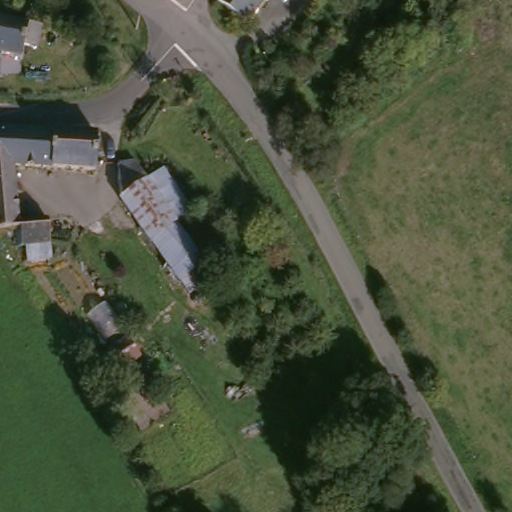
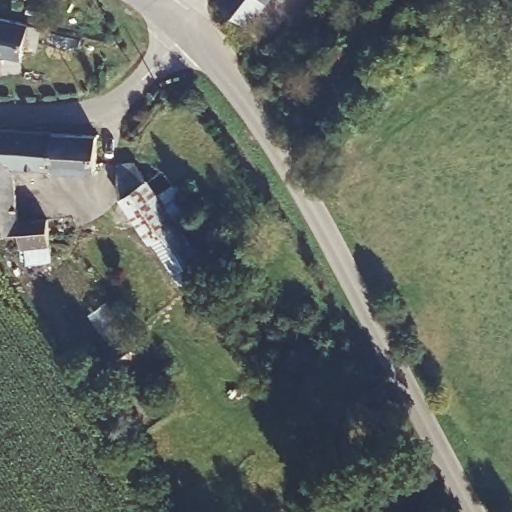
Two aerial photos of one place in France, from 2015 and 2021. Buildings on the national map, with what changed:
unchanged [(222,0),(269,0),(245,31),(217,7),(222,0)]
unchanged [(40,20),(34,46),(21,44),(17,54),(0,50),(0,11),(40,20)]
unchanged [(74,35),(71,53),(41,46),(44,28),(74,35)]
unchanged [(10,166),(17,220),(46,218),(50,244),(7,249),(0,250),(0,131),(90,137),(84,171),(10,166)]
unchanged [(196,208),(171,227),(165,217),(141,186),(165,167),(196,208)]
unchanged [(112,195),(135,177),(141,186),(165,217),(141,235),(112,195)]
unchanged [(179,287),(170,273),(141,235),(165,217),(171,227),(190,259),(200,275),(179,287)]
unchanged [(116,380),(100,362),(124,345),(140,364),(116,380)]

